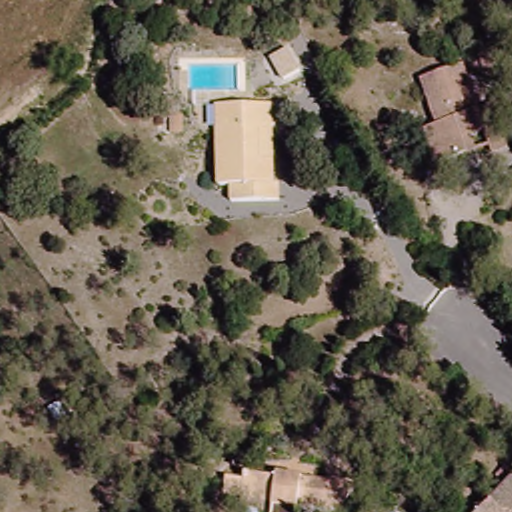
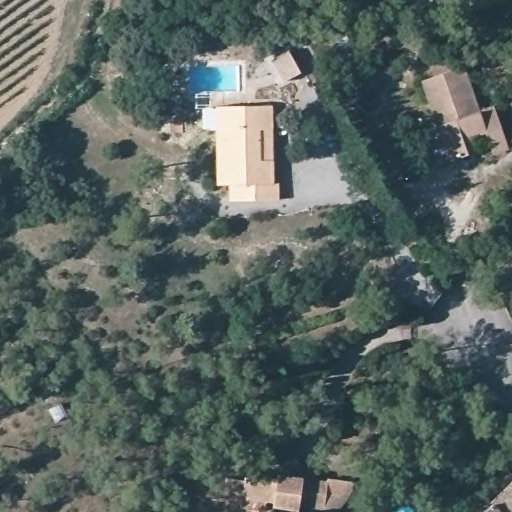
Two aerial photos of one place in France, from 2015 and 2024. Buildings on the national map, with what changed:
unchanged [(415,130),(431,124),(439,120),(422,79),(465,64),(482,106),(494,102),(511,144),(491,151),(482,130),(460,138),(464,149),(445,155),(427,161),(415,130)]
unchanged [(276,184),(281,184),(281,200),(231,201),(231,185),(221,184),(220,129),(226,129),(227,105),(270,105),(272,129),(262,130),(264,159),(274,159),(276,184)]
unchanged [(294,483),(296,474),(337,486),(331,512),(328,512),(308,508),(307,512),(284,512),(286,502),(274,502),(272,512),(254,507),(257,497),(264,474),(294,483)]
unchanged [(512,493),(512,512),(493,512),(512,493)]

